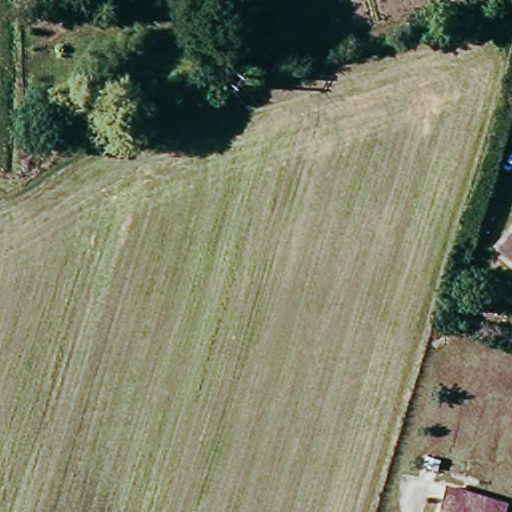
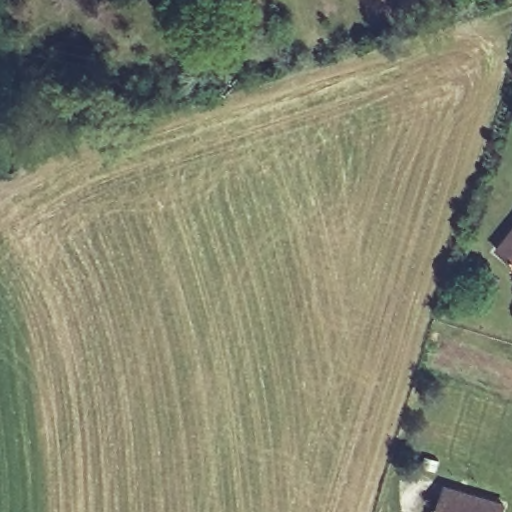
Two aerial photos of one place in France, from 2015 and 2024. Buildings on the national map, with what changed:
unchanged [(497,260),(512,241),(512,272),(497,260)]
unchanged [(507,512),(446,512),(453,489),(500,504),(509,506),(507,512)]

